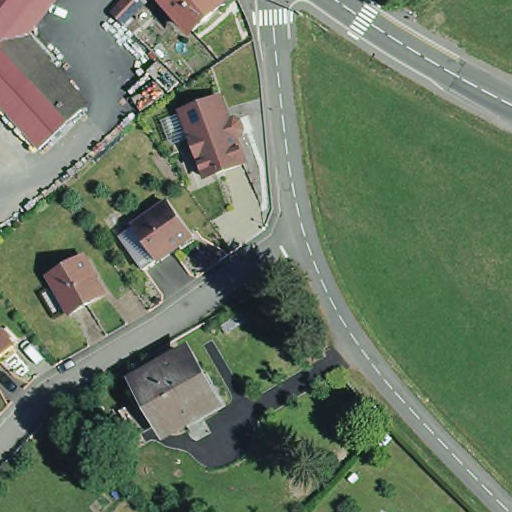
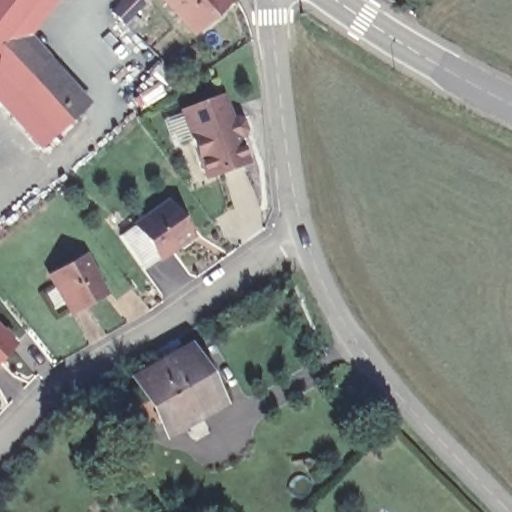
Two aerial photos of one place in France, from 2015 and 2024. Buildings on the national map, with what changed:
unchanged [(0,0),(52,0),(13,48),(40,69),(79,114),(53,138),(50,141),(37,152),(0,112),(0,0)]
unchanged [(122,19),(110,5),(116,0),(141,0),(122,19)]
unchanged [(189,25),(166,0),(218,0),(189,25)]
unchanged [(177,106),(222,93),(233,122),(242,119),(248,134),(238,137),(245,162),(203,177),(177,106)]
unchanged [(133,223),(172,197),(194,235),(157,260),(133,223)]
unchanged [(45,273),(85,253),(105,290),(67,314),(45,273)]
unchanged [(0,356),(0,329),(14,343),(0,356)]
unchanged [(178,353),(192,377),(199,372),(218,406),(189,423),(185,415),(158,429),(130,381),(178,353)]

